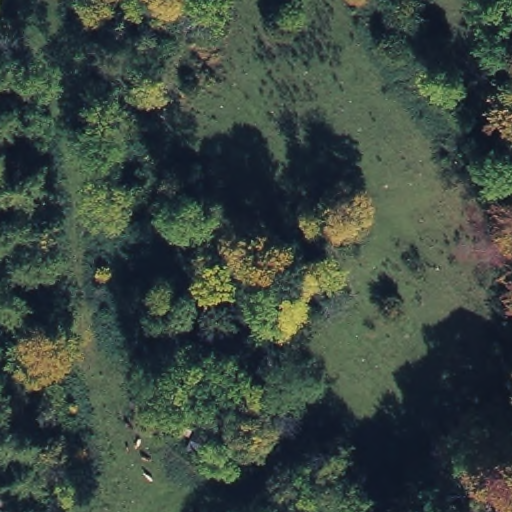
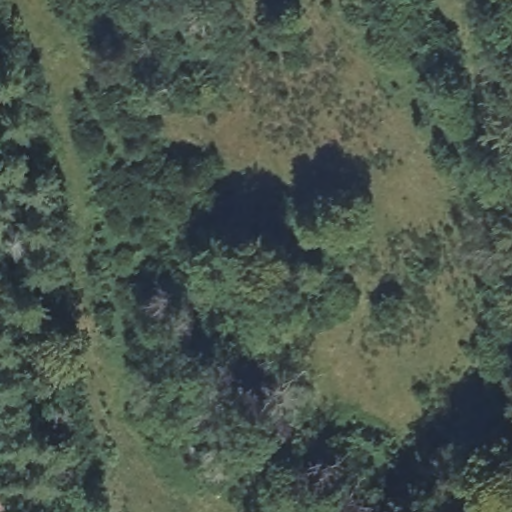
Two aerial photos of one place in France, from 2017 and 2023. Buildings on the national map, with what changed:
unchanged [(173,405),(202,414),(195,438),(165,433),(173,405)]

